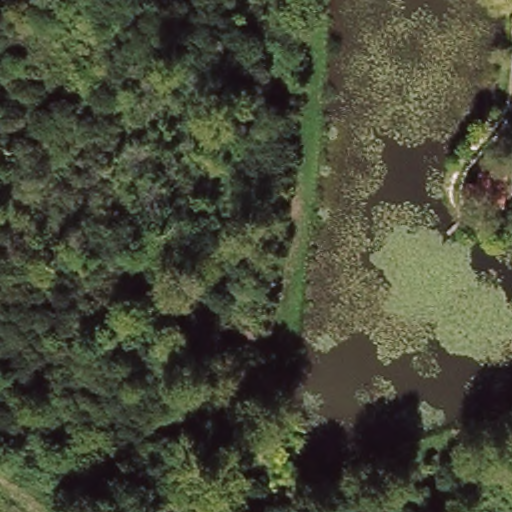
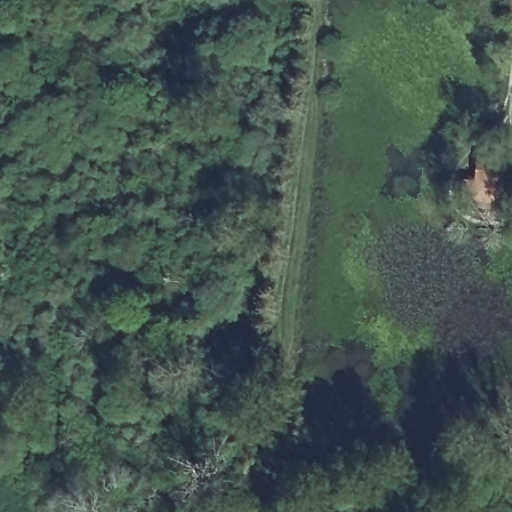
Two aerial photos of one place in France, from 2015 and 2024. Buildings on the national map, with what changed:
unchanged [(504,211),(467,205),(469,200),(470,191),(480,190),(483,171),(507,173),(504,211)]

